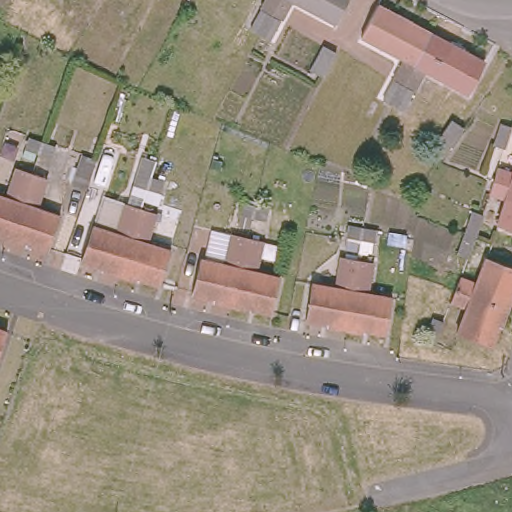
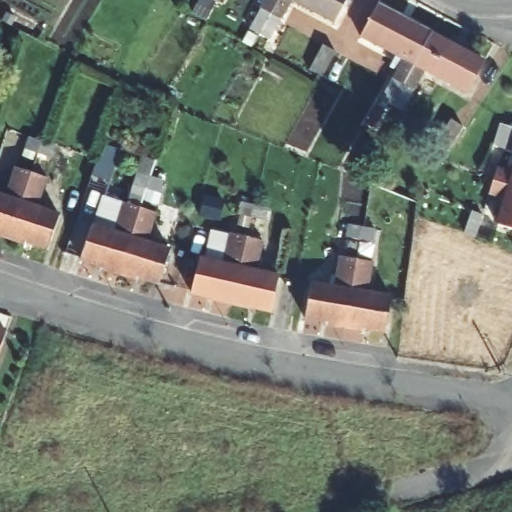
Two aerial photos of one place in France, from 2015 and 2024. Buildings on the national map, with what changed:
unchanged [(270,0),(276,0),(260,30),(254,27),(270,0)]
unchanged [(260,30),(276,0),(284,0),(265,33),(260,30)]
unchanged [(287,0),(345,0),(333,24),(287,0)]
unchanged [(388,95),(406,63),(359,37),(376,5),(429,34),(394,99),(388,95)]
unchanged [(481,62),(464,94),(418,69),(399,102),(394,99),(429,34),(481,62)]
unchanged [(25,150),(30,138),(50,144),(55,146),(50,159),(43,156),(25,150)]
unchanged [(82,156),(96,161),(85,192),(71,187),(82,156)]
unchanged [(493,170),(494,167),(512,172),(512,186),(486,177),(488,169),(493,170)]
unchanged [(0,235),(0,196),(5,198),(15,168),(31,174),(8,237),(0,235)]
unchanged [(127,183),(131,171),(149,178),(155,179),(151,191),(144,189),(127,183)]
unchanged [(31,174),(46,179),(36,208),(59,217),(48,249),(26,242),(25,244),(8,237),(31,174)]
unchanged [(509,202),(492,196),(493,191),(483,187),(486,177),(512,186),(512,230),(502,227),(509,202)]
unchanged [(96,266),(96,265),(75,258),(85,226),(109,233),(118,203),(134,208),(113,272),(96,266)]
unchanged [(149,212),(140,243),(164,251),(153,283),(133,276),(131,278),(113,272),(134,208),(149,212)]
unchanged [(373,242),(358,240),(342,237),(344,225),(360,228),(375,230),(373,242)]
unchanged [(213,304),(213,302),(191,297),(199,264),(224,269),(231,240),(242,241),(243,243),(245,246),(231,308),(213,304)]
unchanged [(245,246),(257,265),(256,276),(264,277),(265,278),(266,279),(275,294),(271,315),(250,311),(249,313),(231,308),(245,246)]
demolished [(447,273),(458,278),(461,273),(476,279),(486,256),(512,268),(512,282),(509,289),(511,291),(504,308),(443,284),(447,273)]
unchanged [(326,324),(326,320),(306,317),(311,284),(333,288),(339,258),(354,261),(343,327),(326,324)]
unchanged [(369,263),(364,293),(391,297),(384,330),(362,326),(361,330),(343,327),(354,261),(369,263)]
demolished [(496,327),(493,327),(486,346),(454,333),(464,309),(448,302),(450,298),(439,293),(443,284),(504,308),(496,327)]
unchanged [(6,331),(0,350),(0,329),(6,331)]

